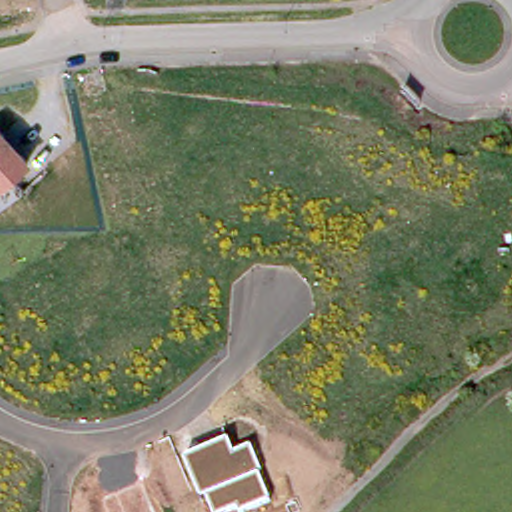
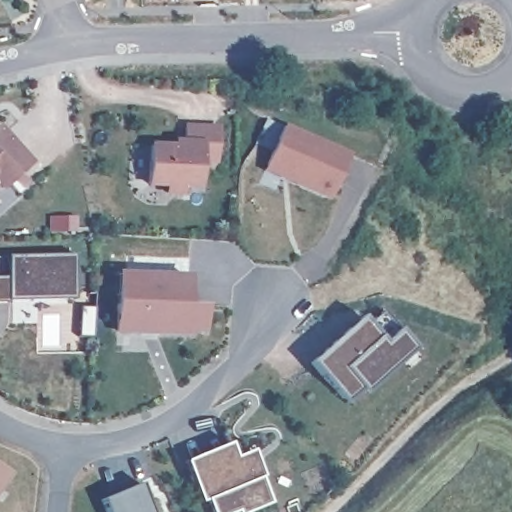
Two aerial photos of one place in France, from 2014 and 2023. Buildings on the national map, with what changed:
unchanged [(185,195),(165,194),(165,186),(148,185),(147,144),(173,142),(173,140),(183,140),(183,124),(220,125),(218,164),(201,162),(200,188),(185,187),(185,195)]
new [(349,154),(329,200),(261,171),(281,125),(349,154)]
unchanged [(35,164),(0,196),(0,128),(35,164)]
new [(7,276),(7,256),(73,255),(75,298),(8,300),(0,300),(0,277),(7,276)]
new [(189,303),(205,304),(205,331),(192,332),(192,336),(114,333),(115,272),(190,273),(189,303)]
new [(384,345),(398,332),(414,350),(365,394),(360,390),(345,403),(311,362),(360,318),(384,345)]
unchanged [(236,453),(252,448),(274,504),(254,512),(239,512),(238,510),(235,512),(211,512),(205,498),(200,501),(184,460),(230,441),(236,453)]
unchanged [(141,484),(152,512),(108,512),(103,500),(141,484)]

